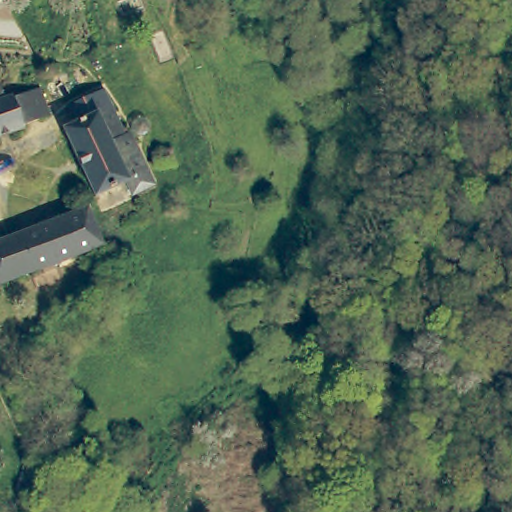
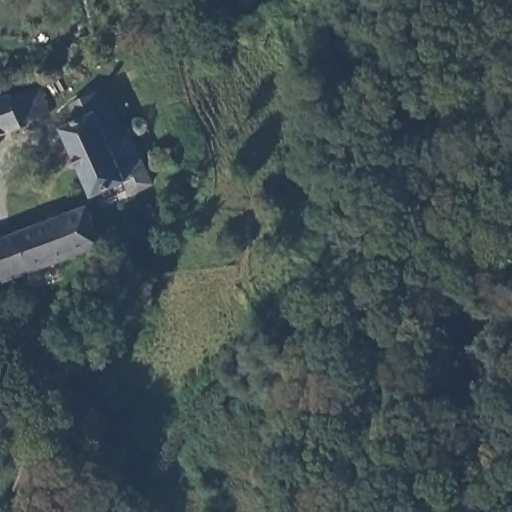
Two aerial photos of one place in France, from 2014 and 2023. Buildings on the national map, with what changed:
unchanged [(38,81),(49,116),(0,133),(0,95),(38,81)]
unchanged [(136,195),(130,182),(93,197),(65,127),(100,114),(115,107),(127,137),(131,136),(152,187),(136,195)]
unchanged [(31,268),(16,230),(85,204),(99,239),(31,268)]
unchanged [(16,230),(31,268),(10,277),(0,281),(0,237),(16,230)]

